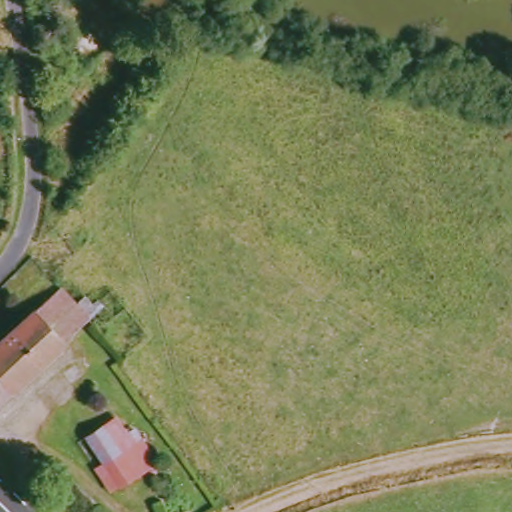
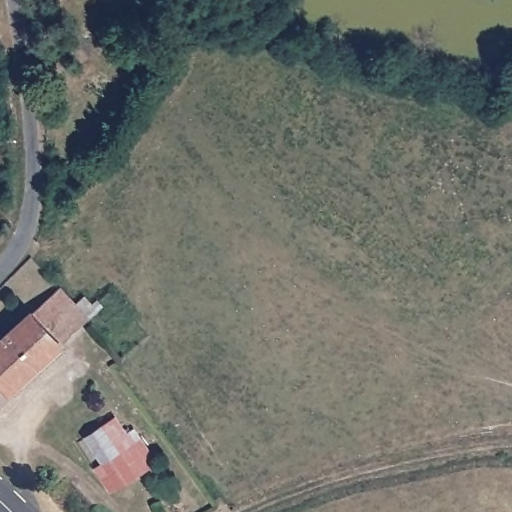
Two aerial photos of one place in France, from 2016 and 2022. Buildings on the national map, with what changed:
unchanged [(82,62),(71,50),(99,27),(109,40),(82,62)]
unchanged [(66,342),(0,403),(0,339),(35,308),(39,310),(63,288),(78,305),(85,297),(97,311),(88,318),(64,338),(66,342)]
unchanged [(95,467),(101,462),(85,436),(116,415),(134,442),(142,437),(158,460),(149,466),(118,486),(110,492),(95,467)]

